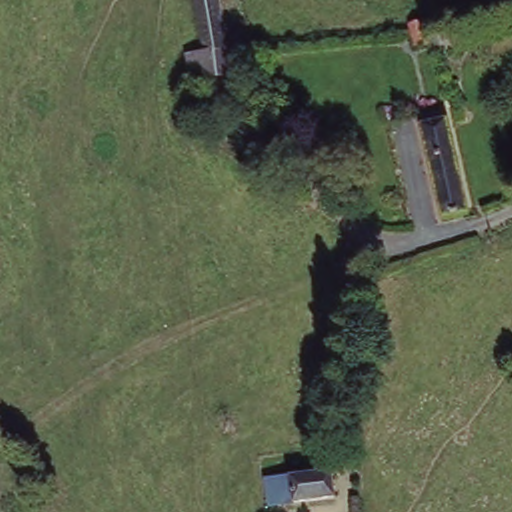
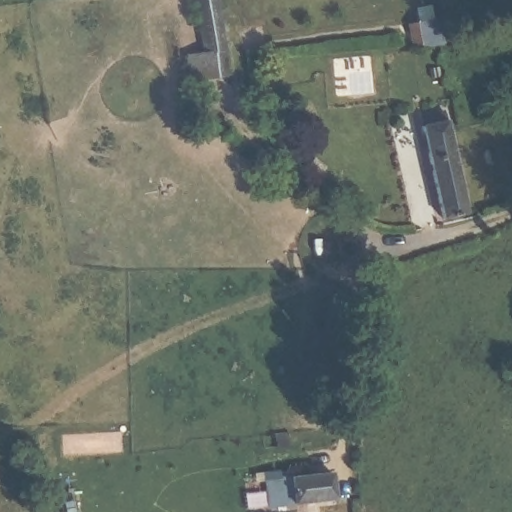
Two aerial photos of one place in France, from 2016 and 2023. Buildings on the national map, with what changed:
unchanged [(199,53),(192,0),(223,0),(231,49),(235,75),(203,78),(199,53)]
unchanged [(436,52),(413,57),(404,29),(426,22),(432,36),(436,52)]
unchanged [(439,206),(418,109),(443,105),(463,201),(439,206)]
unchanged [(273,502),(269,471),(287,469),(335,465),(337,492),(291,495),(291,500),(273,502)]

